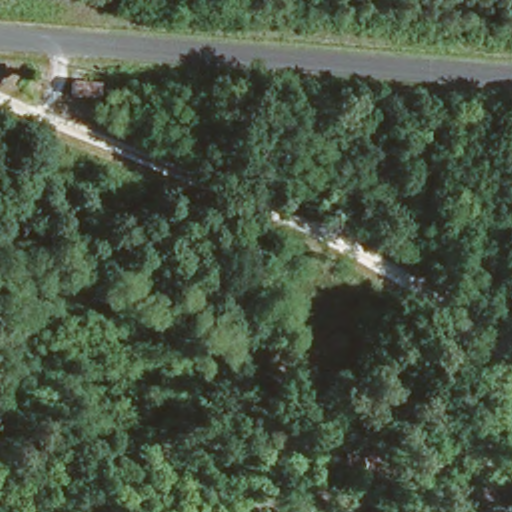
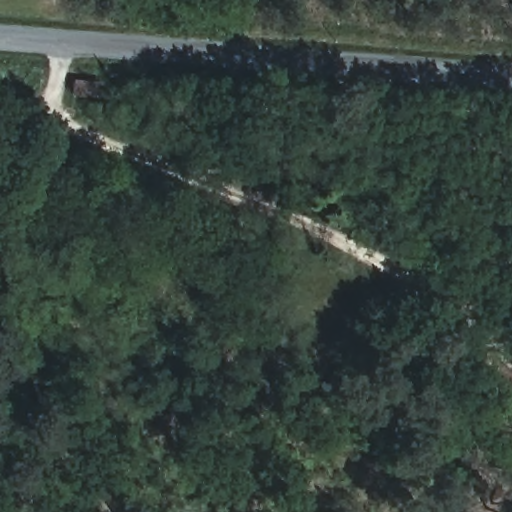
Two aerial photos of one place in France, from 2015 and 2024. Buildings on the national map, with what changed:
unchanged [(105,101),(76,99),(77,84),(106,86),(105,101)]

